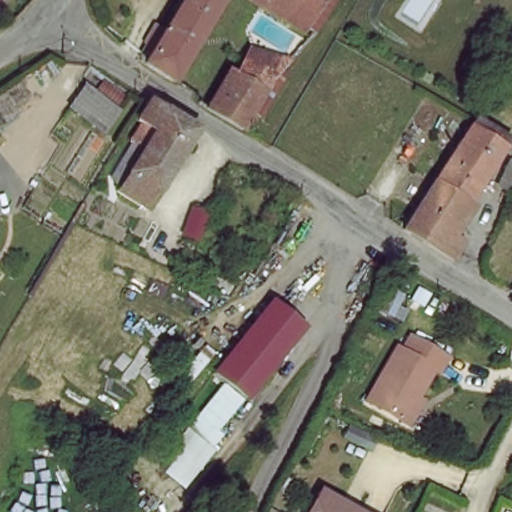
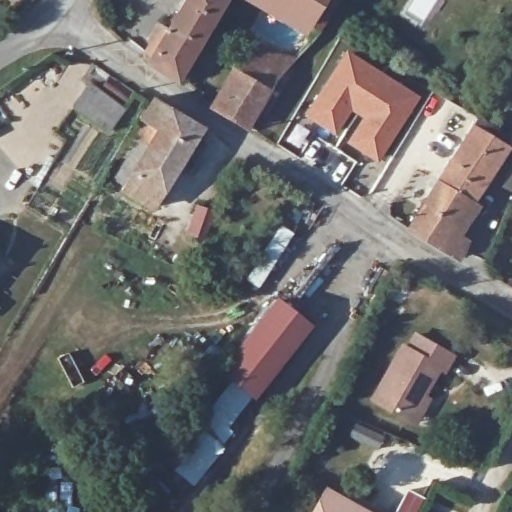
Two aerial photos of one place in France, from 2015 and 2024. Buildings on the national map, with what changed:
unchanged [(151,62),(189,0),(230,0),(181,81),(151,62)]
unchanged [(325,0),(313,21),(310,26),(264,0),(325,0)]
unchanged [(279,71),(272,78),(243,125),(213,110),(251,50),(289,61),(279,71)]
new [(347,142),(363,117),(350,110),(335,135),(304,115),(345,50),(419,96),(377,162),(347,142)]
unchanged [(123,104),(109,130),(75,109),(89,85),(123,104)]
unchanged [(135,146),(131,144),(142,124),(139,121),(150,101),(200,131),(152,210),(120,192),(121,190),(116,179),(135,146)]
unchanged [(510,146),(452,229),(470,239),(459,256),(408,226),(477,129),(510,146)]
unchanged [(223,207),(212,235),(195,229),(207,201),(223,207)]
unchanged [(409,290),(398,311),(377,300),(385,276),(409,290)]
unchanged [(285,308),(315,330),(261,401),(232,377),(285,308)]
unchanged [(371,400),(404,346),(409,349),(418,336),(454,357),(445,374),(441,372),(424,399),(429,402),(415,425),(371,400)]
unchanged [(327,487),(371,512),(314,512),(327,487)]

